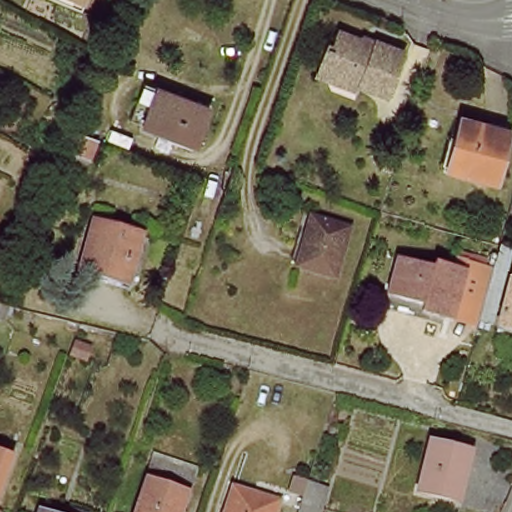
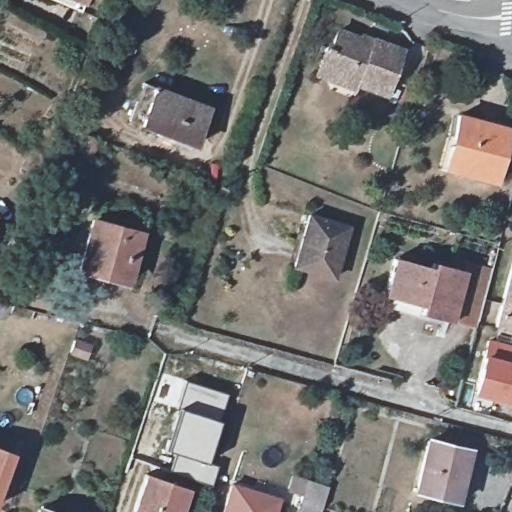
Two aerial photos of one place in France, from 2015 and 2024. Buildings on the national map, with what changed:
unchanged [(78,0),(88,0),(87,4),(78,0)]
unchanged [(336,79),(327,59),(331,46),(336,49),(343,30),(378,44),(379,40),(407,50),(390,94),(362,82),(360,88),(336,79)]
unchanged [(149,89),(211,112),(198,149),(135,126),(149,89)]
unchanged [(512,128),(512,135),(495,187),(445,171),(462,113),(512,128)]
unchanged [(88,140),(78,164),(51,155),(60,131),(88,140)]
unchanged [(314,210),(355,224),(335,290),(294,278),(314,210)]
unchanged [(94,220),(140,232),(128,281),(81,270),(94,220)]
unchanged [(504,243),(504,242),(512,245),(512,285),(501,328),(483,323),(496,271),(504,243)]
unchanged [(404,258),(435,267),(437,261),(470,272),(454,319),(454,321),(389,301),(404,258)]
unchanged [(470,272),(472,264),(496,271),(483,323),(482,328),(454,319),(470,272)]
unchanged [(512,331),(501,328),(512,285),(512,331)]
unchanged [(18,310),(9,330),(0,326),(0,306),(18,310)]
new [(512,349),(512,412),(467,396),(485,340),(512,349)]
unchanged [(75,345),(96,352),(91,369),(70,361),(75,345)]
new [(184,380),(227,394),(218,420),(179,407),(176,406),(184,380)]
new [(210,486),(168,472),(174,452),(166,450),(179,407),(218,420),(205,461),(217,465),(210,486)]
unchanged [(430,445),(472,455),(459,503),(418,493),(430,445)]
unchanged [(18,456),(0,499),(0,450),(18,456)]
unchanged [(149,468),(193,482),(182,512),(134,512),(149,468)]
unchanged [(301,503),(309,480),(331,487),(323,510),(322,512),(298,512),(301,503)]
unchanged [(233,493),(279,507),(277,512),(226,512),(233,493)]
unchanged [(66,502),(91,511),(91,512),(63,512),(66,502)]
unchanged [(45,510),(49,512),(44,512),(45,510)]

